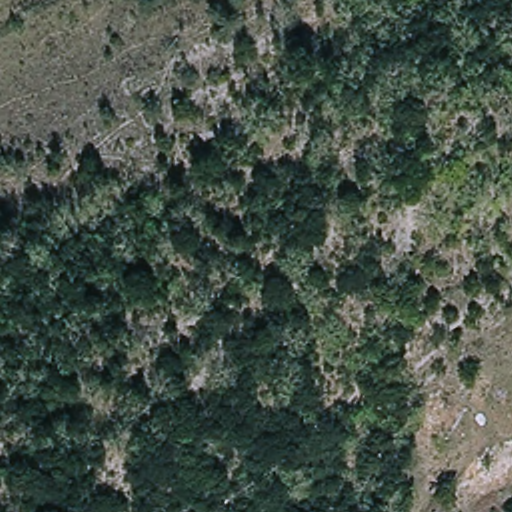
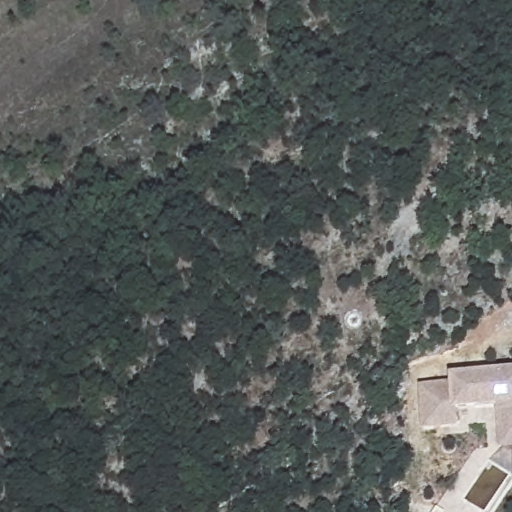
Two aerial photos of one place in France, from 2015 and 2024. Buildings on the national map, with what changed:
new [(497,406),(454,408),(453,425),(421,427),(420,381),(449,379),(448,371),(512,368),(512,448),(499,449),(497,406)]

